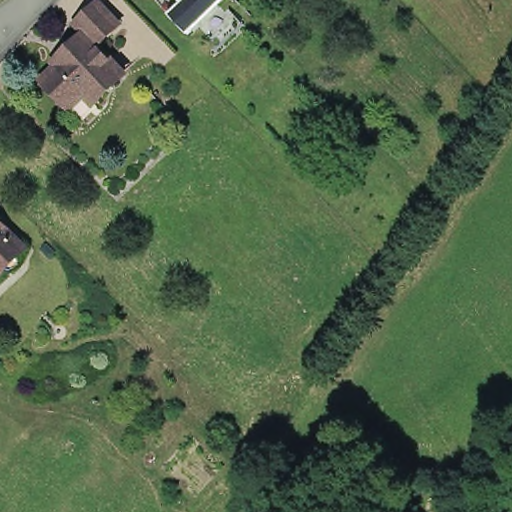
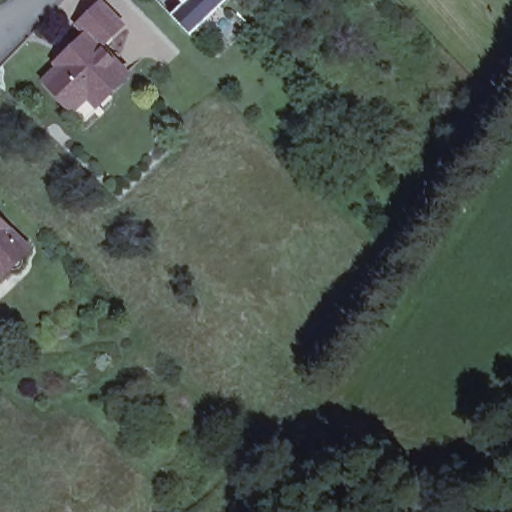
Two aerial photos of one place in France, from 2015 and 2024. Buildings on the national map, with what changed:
unchanged [(171,15),(183,2),(181,0),(227,0),(191,36),(171,15)]
unchanged [(78,108),(51,81),(65,67),(61,64),(93,33),(85,26),(106,5),(123,21),(100,42),(128,71),(98,101),(84,115),(78,108)]
unchanged [(4,278),(0,276),(0,210),(35,245),(4,278)]

